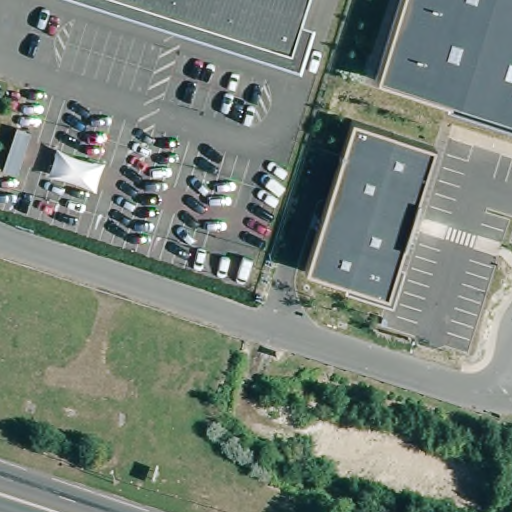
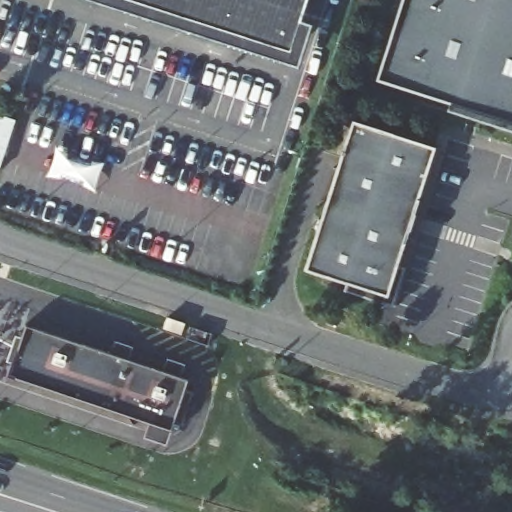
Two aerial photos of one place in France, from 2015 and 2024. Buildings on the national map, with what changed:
unchanged [(298,27),(311,33),(296,73),(85,0),(307,0),(298,27)]
unchanged [(446,106),(447,103),(377,81),(403,0),(512,0),(512,128),(446,106)]
unchanged [(435,149),(399,265),(403,268),(392,305),(345,290),(346,285),(306,271),(352,120),(435,149)]
new [(188,385),(166,448),(145,443),(149,427),(9,378),(26,330),(188,385)]

